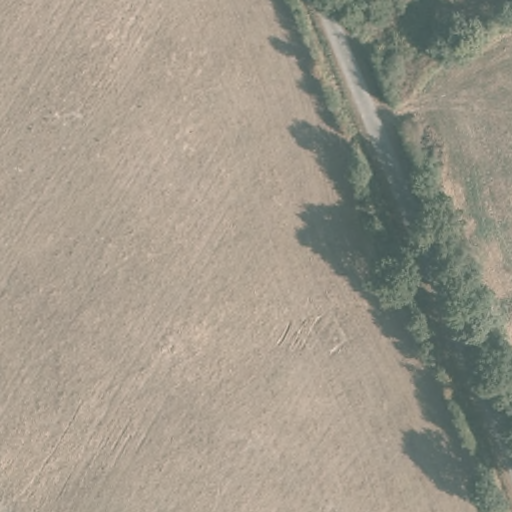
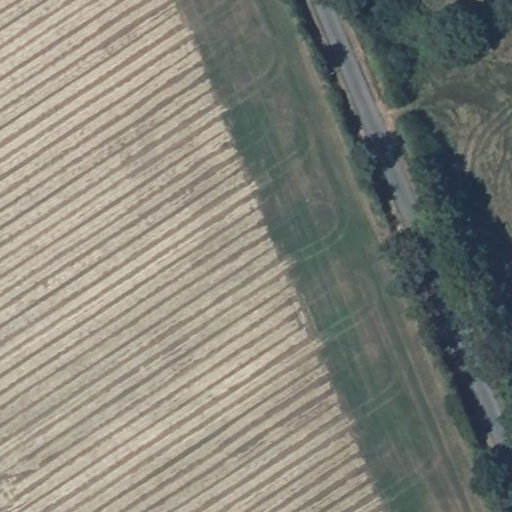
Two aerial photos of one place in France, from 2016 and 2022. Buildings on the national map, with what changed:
[]

